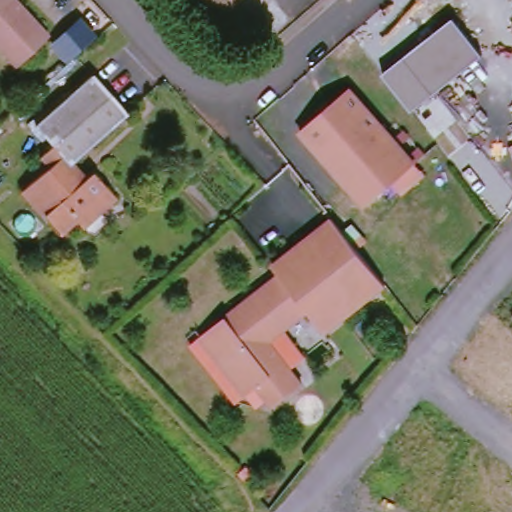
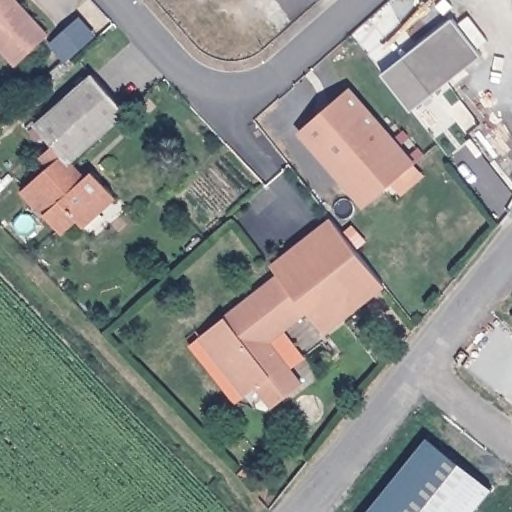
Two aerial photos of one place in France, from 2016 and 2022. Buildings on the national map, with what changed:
unchanged [(22,65),(0,42),(0,0),(21,0),(54,35),(22,65)]
unchanged [(450,16),(480,53),(412,110),(409,107),(381,74),(450,16)]
unchanged [(105,215),(87,231),(81,224),(65,237),(27,195),(56,170),(47,160),(58,150),(40,130),(97,79),(132,118),(76,167),(84,176),(80,180),(86,187),(98,176),(117,197),(121,201),(105,215)]
unchanged [(354,91),(420,167),(371,210),(305,134),(354,91)]
unchanged [(272,270),(332,222),(386,288),(326,336),(309,315),(287,332),(306,355),(289,368),(303,385),(273,409),(256,407),(250,399),(247,401),(242,394),(234,400),(190,345),(277,275),(272,270)]
new [(427,437),(492,487),(472,512),(367,512),(427,437)]

